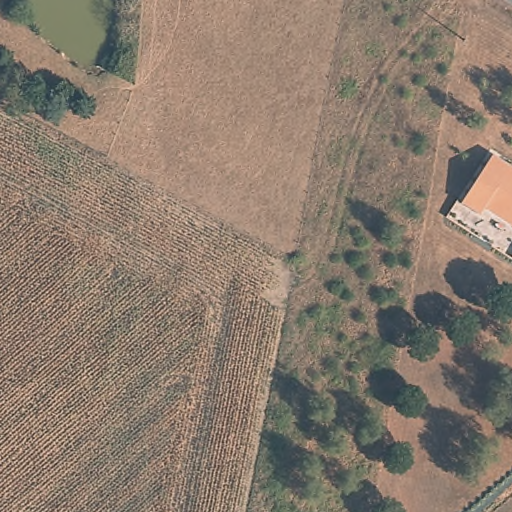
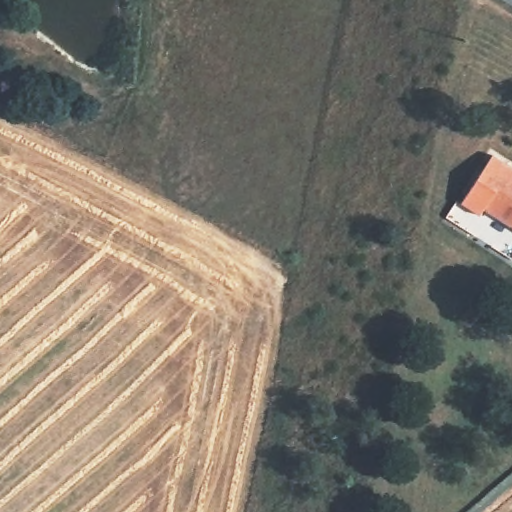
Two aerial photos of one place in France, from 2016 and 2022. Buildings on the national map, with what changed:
unchanged [(492,212),(486,218),(462,199),(496,156),(512,167),(512,227),(492,212)]

